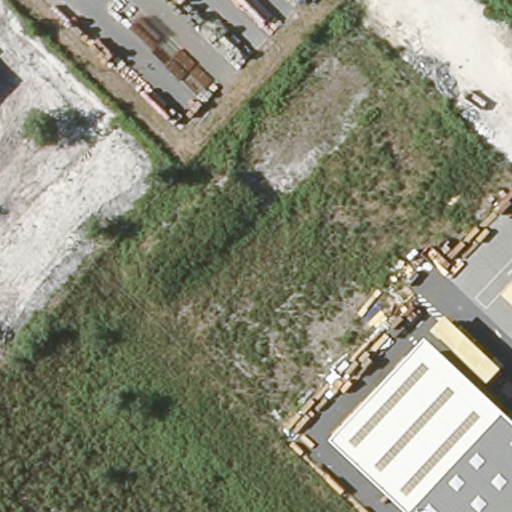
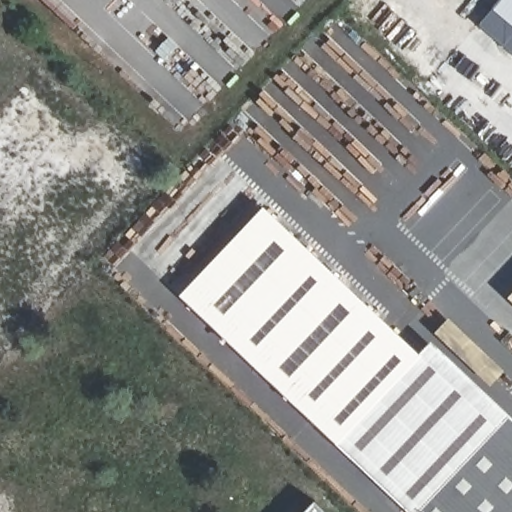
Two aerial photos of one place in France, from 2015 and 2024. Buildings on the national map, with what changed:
new [(500,0),(512,0),(512,26),(492,9),(500,0)]
new [(180,294),(264,206),(420,354),(337,442),(180,294)]
unchanged [(512,292),(512,299),(509,295),(512,292)]
new [(491,385),(435,332),(449,317),(505,370),(491,385)]
unchanged [(433,341),(512,416),(512,512),(410,512),(337,442),(433,341)]
new [(327,512),(303,512),(314,499),(327,512)]

